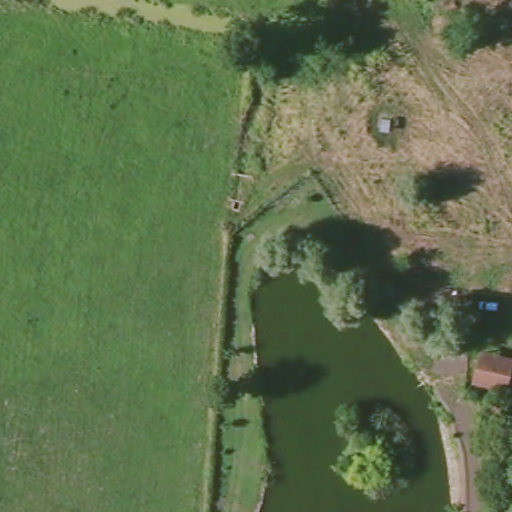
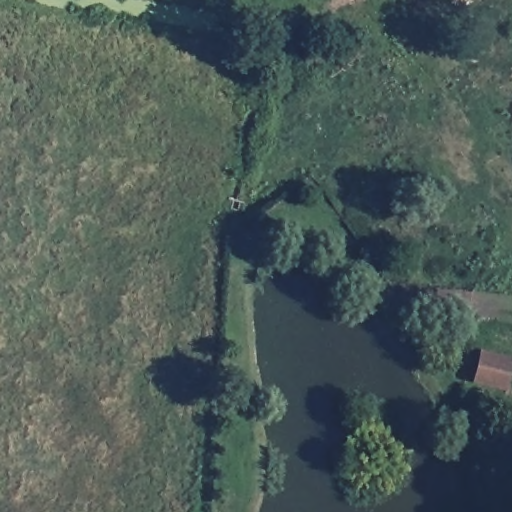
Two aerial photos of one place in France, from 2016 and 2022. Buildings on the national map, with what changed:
unchanged [(512,352),(512,356),(503,391),(482,386),(492,347),(512,352)]

